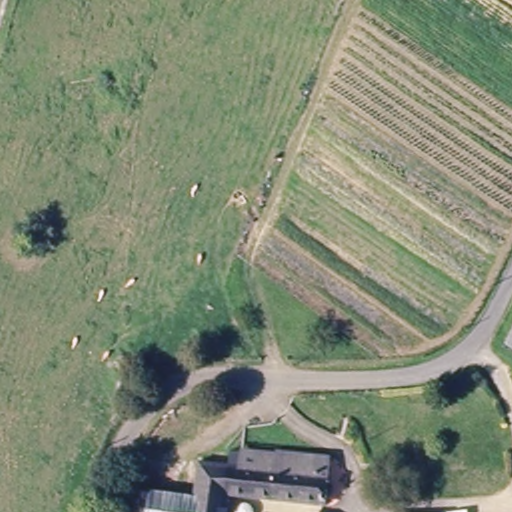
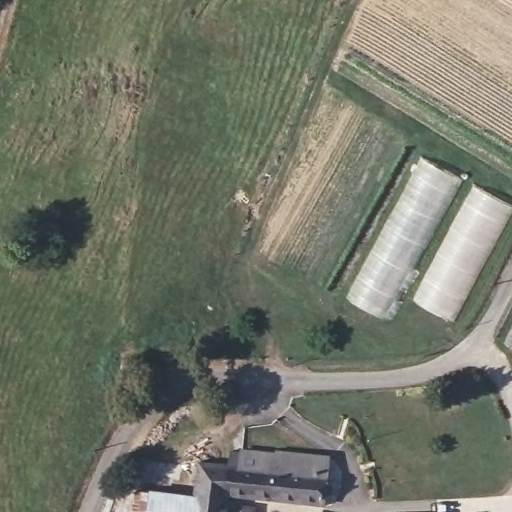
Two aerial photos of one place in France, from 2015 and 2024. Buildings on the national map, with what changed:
new [(345,299),(421,156),(462,180),(387,320),(345,299)]
new [(413,301),(473,186),(512,208),(512,214),(454,322),(413,301)]
new [(504,344),(512,328),(512,349),(504,344)]
unchanged [(201,500),(201,468),(246,468),(246,451),(296,454),(327,456),(326,474),(324,505),(232,501),(232,512),(200,512),(201,500)]
unchanged [(136,499),(201,500),(200,512),(136,512),(136,499)]

